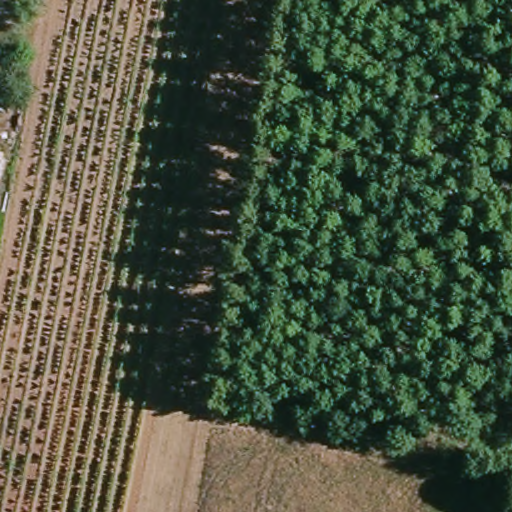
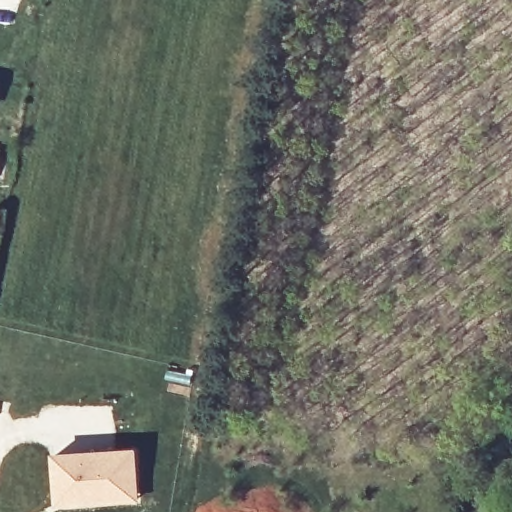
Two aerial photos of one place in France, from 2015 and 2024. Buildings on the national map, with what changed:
new [(53,456),(134,451),(138,502),(56,509),(53,456)]

